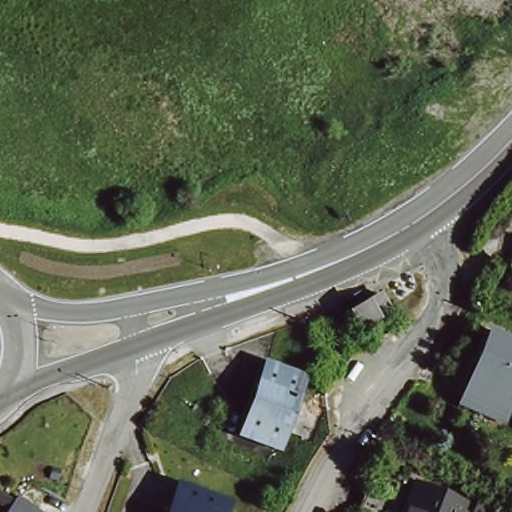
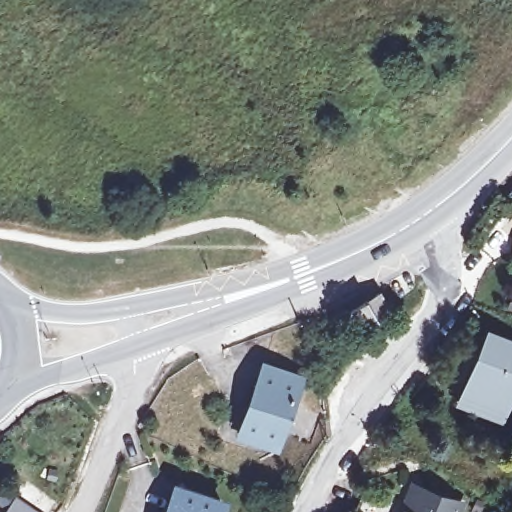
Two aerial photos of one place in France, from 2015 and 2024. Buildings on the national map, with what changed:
unchanged [(411,278),(415,285),(402,293),(398,286),(411,278)]
unchanged [(378,295),(388,312),(358,330),(348,313),(378,295)]
unchanged [(512,339),(512,395),(504,416),(460,398),(487,329),(512,339)]
unchanged [(298,374),(291,396),(309,402),(299,433),(280,427),(275,440),(240,428),(264,362),(298,374)]
unchanged [(217,512),(167,512),(181,472),(225,488),(217,512)]
unchanged [(460,512),(355,512),(364,491),(405,508),(413,489),(462,507),(460,512)]
unchanged [(36,512),(8,512),(17,497),(36,512)]
unchanged [(483,512),(473,512),(472,511),(477,501),(486,505),(483,512)]

